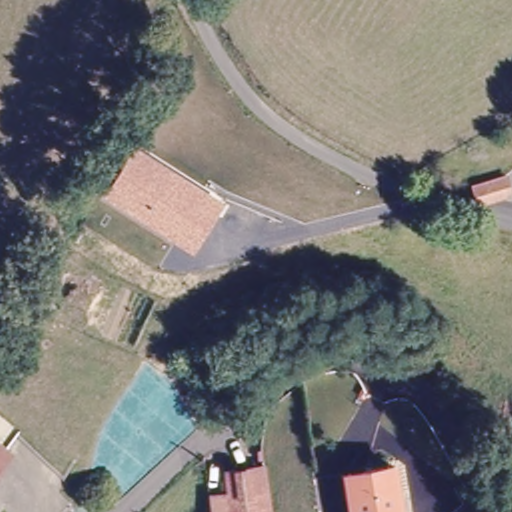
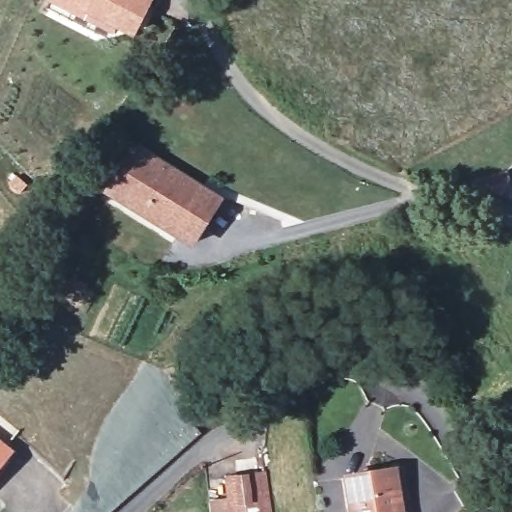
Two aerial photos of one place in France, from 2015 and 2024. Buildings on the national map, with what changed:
new [(132,31),(107,38),(47,6),(50,0),(148,0),(149,1),(132,31)]
unchanged [(96,187),(125,138),(226,200),(193,249),(96,187)]
unchanged [(478,184),(476,169),(510,164),(510,170),(508,196),(489,188),(478,184)]
unchanged [(6,455),(2,459),(0,462),(0,434),(15,446),(6,455)]
unchanged [(397,469),(402,512),(354,512),(349,474),(397,469)]
unchanged [(234,512),(234,476),(265,476),(272,476),(272,512),(234,512)]

